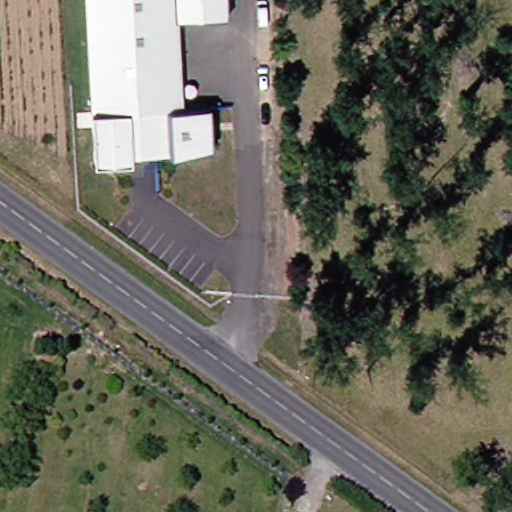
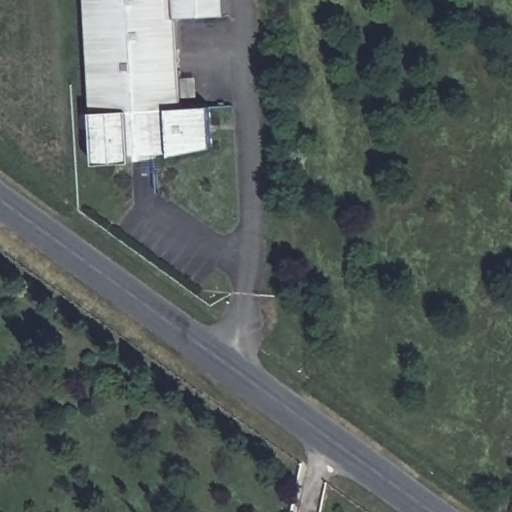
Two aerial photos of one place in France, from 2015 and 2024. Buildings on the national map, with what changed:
unchanged [(176,20),(181,110),(209,108),(211,150),(163,159),(163,152),(130,154),(130,164),(93,166),(83,0),(224,0),(225,17),(211,18),(176,20)]

